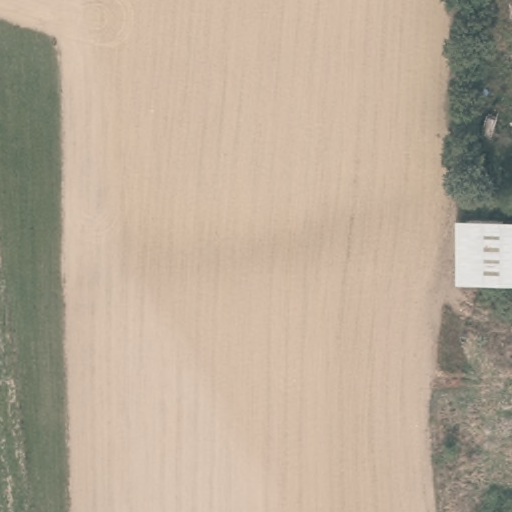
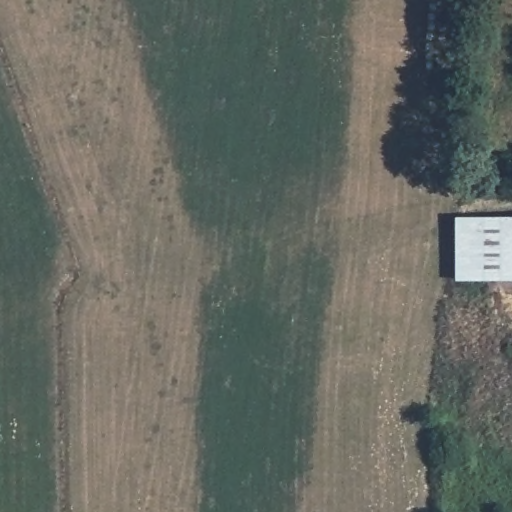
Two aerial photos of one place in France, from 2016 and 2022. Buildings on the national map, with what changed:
unchanged [(452,287),(453,221),(512,221),(512,287),(452,287)]

